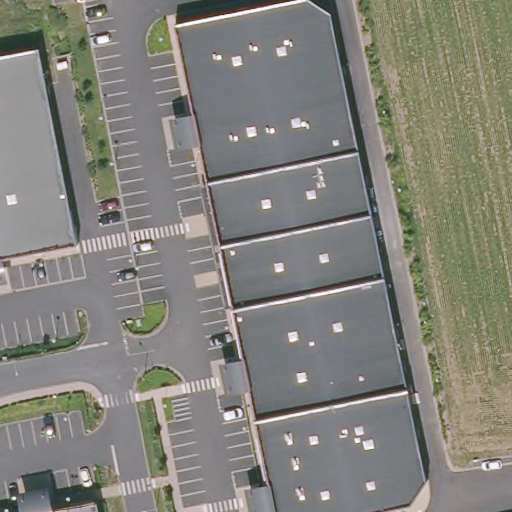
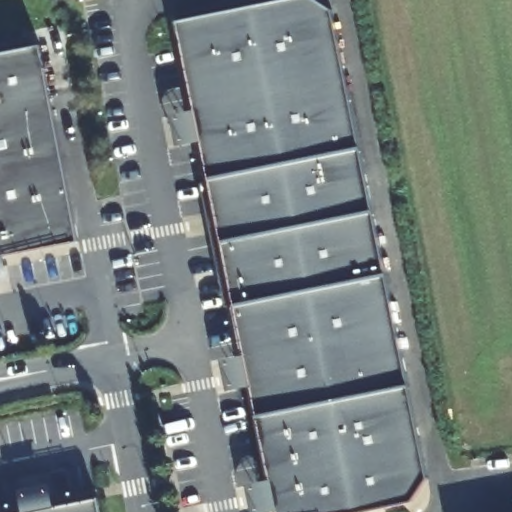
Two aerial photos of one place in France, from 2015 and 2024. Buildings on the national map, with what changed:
unchanged [(252,386),(226,390),(221,361),(245,357),(235,306),(226,308),(202,184),(210,180),(203,141),(176,145),(170,115),(195,110),(178,21),(281,0),(316,0),(331,10),(428,477),(412,502),(367,512),(278,512),(277,510),(266,512),(251,512),(246,485),(270,481),(252,386)]
unchanged [(5,257),(9,281),(0,283),(0,53),(40,45),(77,242),(5,257)]
unchanged [(50,484),(55,508),(97,499),(100,512),(24,512),(20,489),(50,484)]

